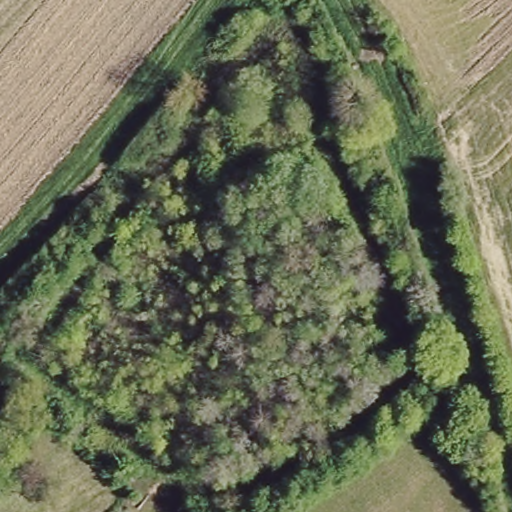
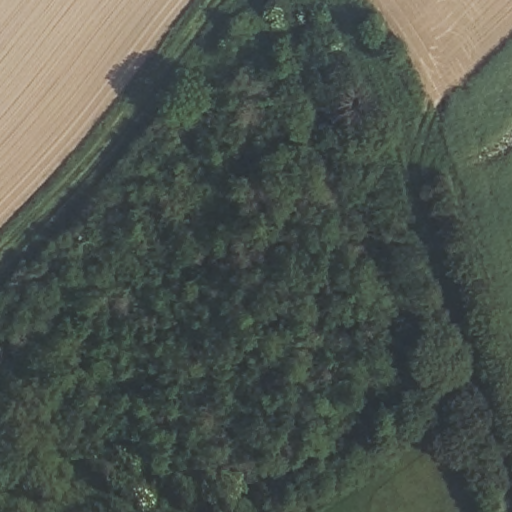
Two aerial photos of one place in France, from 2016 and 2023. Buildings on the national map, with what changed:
unchanged [(16,395),(25,408),(15,415),(6,402),(16,395)]

